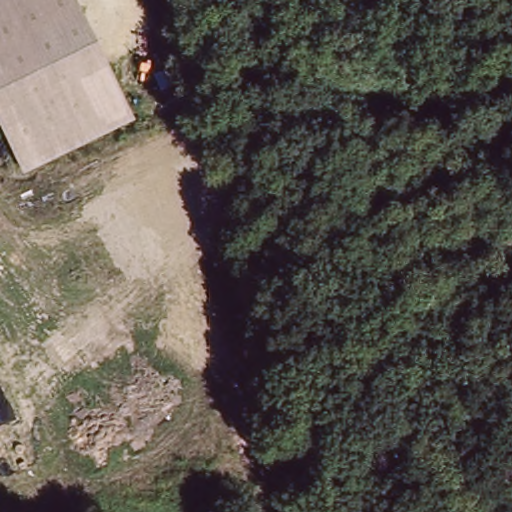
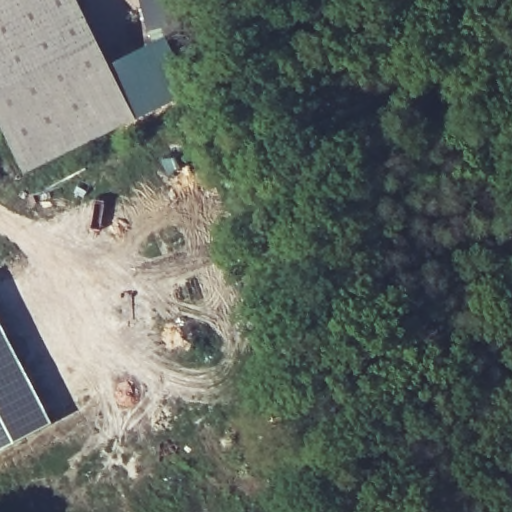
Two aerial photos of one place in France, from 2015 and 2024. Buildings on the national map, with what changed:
unchanged [(0,117),(0,0),(77,0),(113,73),(138,118),(110,134),(28,174),(0,117)]
new [(0,451),(0,321),(52,422),(0,451)]

